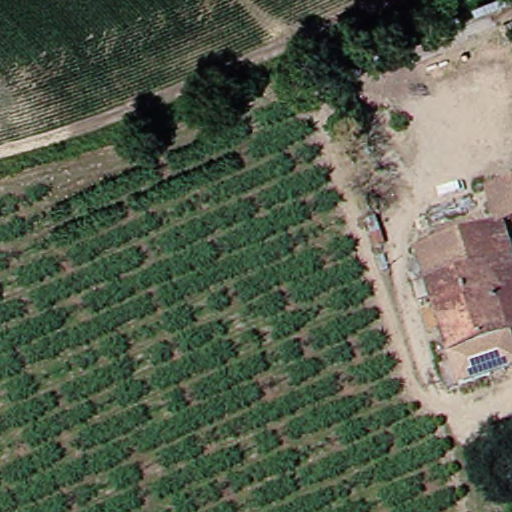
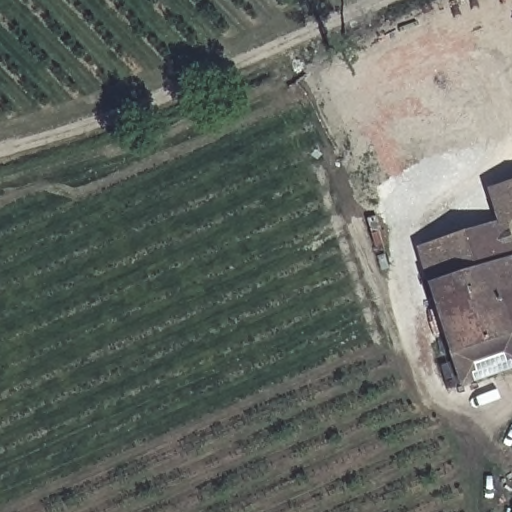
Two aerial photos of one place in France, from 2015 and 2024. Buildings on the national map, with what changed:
unchanged [(430,240),(502,217),(500,195),(512,192),(512,369),(459,388),(430,240)]

